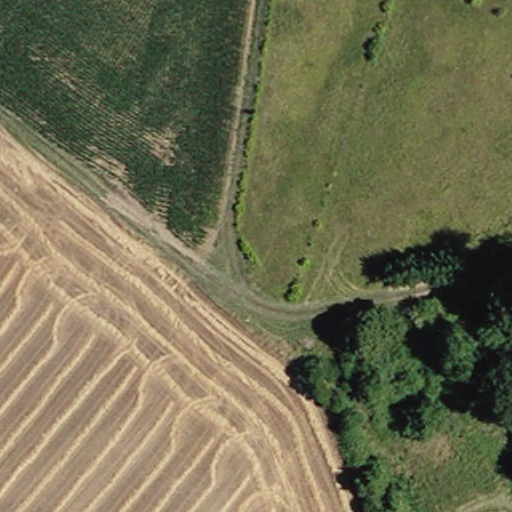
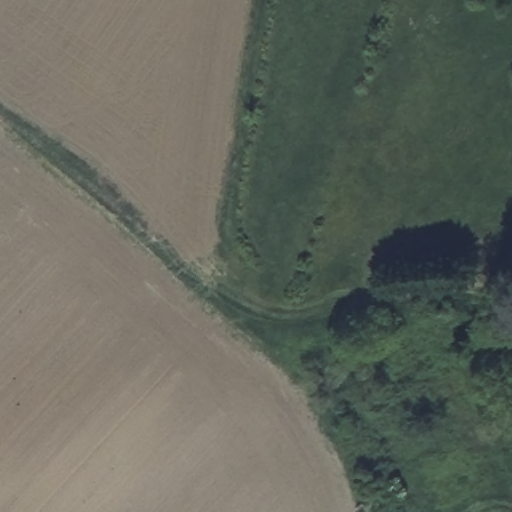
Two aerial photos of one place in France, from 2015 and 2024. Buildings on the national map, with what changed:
unchanged [(483,348),(493,343),(501,358),(483,366),(477,352),(483,348)]

